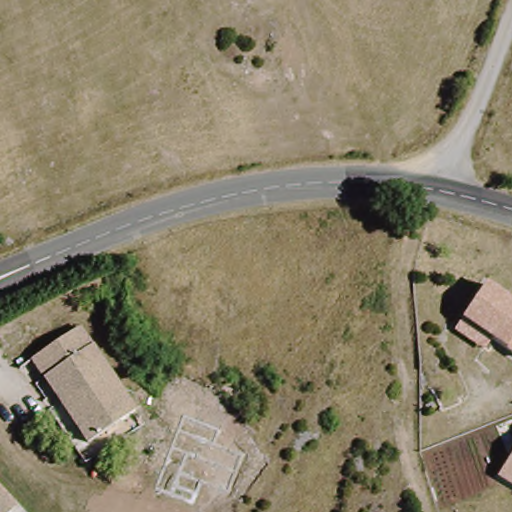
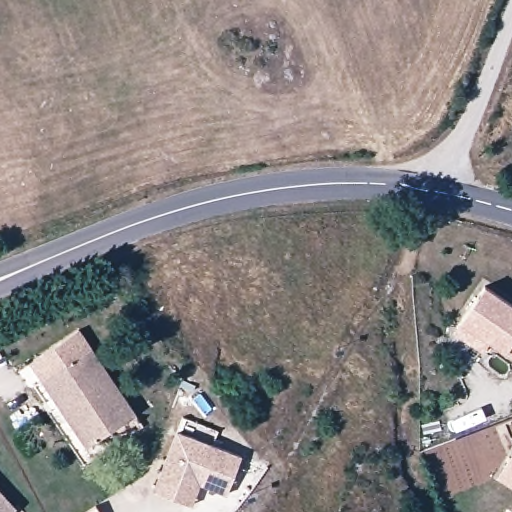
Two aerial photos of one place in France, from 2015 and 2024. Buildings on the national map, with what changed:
unchanged [(461,320),(482,285),(512,305),(512,354),(504,348),(485,337),(479,349),(456,330),(461,320)]
unchanged [(129,412),(85,436),(36,354),(84,330),(129,412)]
new [(242,455),(227,494),(200,484),(192,505),(152,492),(176,430),(242,455)]
unchanged [(512,456),(512,489),(497,480),(512,456)]
unchanged [(16,512),(0,512),(0,488),(19,509),(16,512)]

